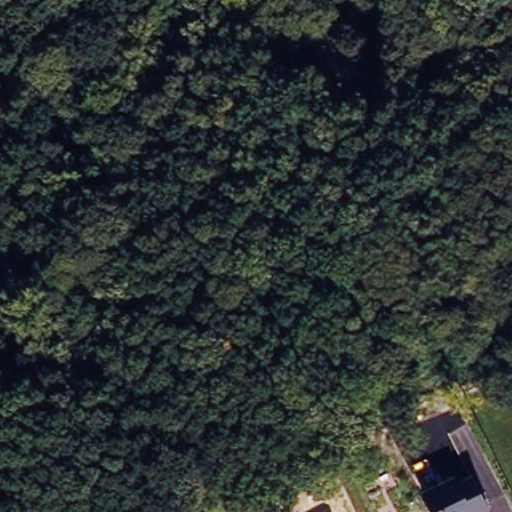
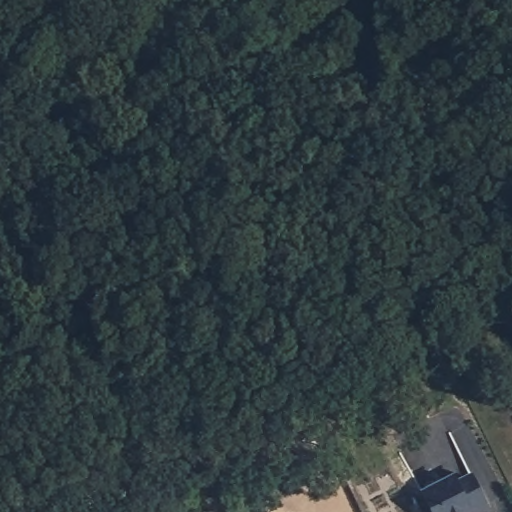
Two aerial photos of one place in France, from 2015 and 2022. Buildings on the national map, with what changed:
unchanged [(429,512),(420,492),(454,476),(457,482),(472,474),(490,511),(488,512),(429,512)]

